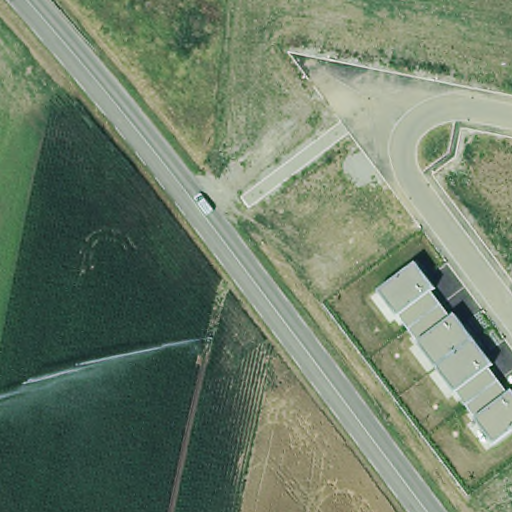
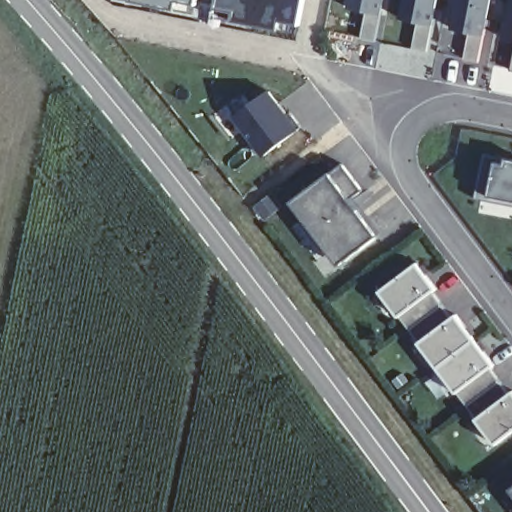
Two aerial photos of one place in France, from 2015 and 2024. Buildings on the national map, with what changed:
new [(197,18),(110,2),(110,0),(200,0),(197,18)]
new [(299,26),(280,22),(278,31),(235,23),(236,12),(217,9),(219,0),(304,0),(299,26)]
new [(349,0),(382,0),(375,40),(360,38),(365,11),(348,7),(349,0)]
new [(403,0),(436,0),(426,51),(411,48),(417,21),(399,17),(403,0)]
new [(456,0),(490,0),(477,61),(462,58),(468,31),(451,28),(456,0)]
new [(503,40),(512,0),(512,43),(503,40)]
new [(380,42),(418,51),(417,58),(414,57),(412,67),(423,70),(422,76),(375,67),(380,42)]
new [(510,71),(512,61),(512,72),(510,71)]
new [(268,90),(286,114),(290,111),(300,126),(263,155),(233,116),(268,90)]
new [(471,200),(481,157),(498,161),(512,164),(512,208),(471,200)]
new [(295,198),(341,162),(362,190),(350,199),(377,235),(343,261),(330,244),(322,250),(300,221),(307,215),(295,198)]
unchanged [(417,264),(454,316),(457,314),(493,365),(491,367),(512,392),(512,432),(495,443),(382,291),(417,264)]

